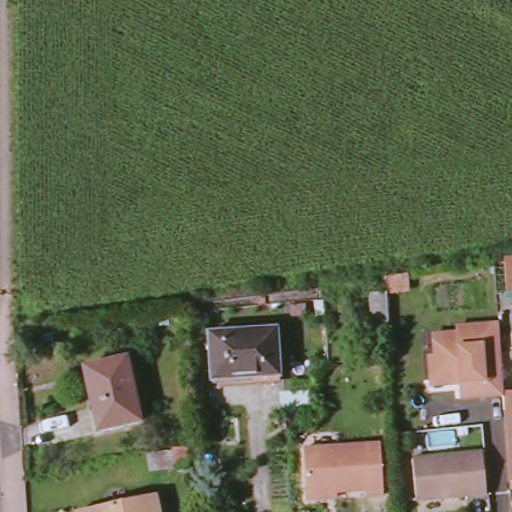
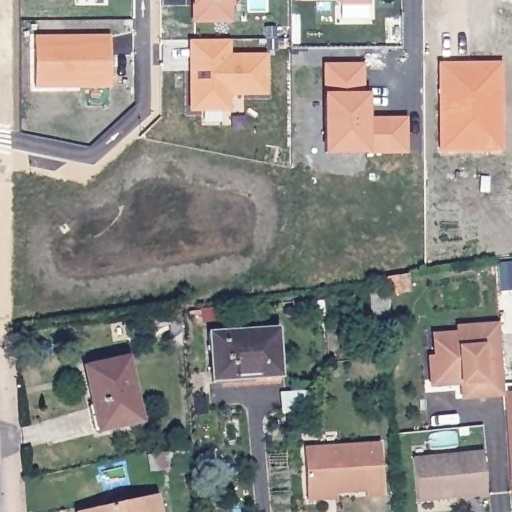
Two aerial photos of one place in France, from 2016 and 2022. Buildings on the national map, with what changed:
new [(226,22),(189,23),(188,0),(225,0),(226,22)]
new [(368,5),(341,5),(341,0),(368,0),(368,5)]
new [(95,88),(33,89),(32,39),(107,38),(107,74),(108,88),(95,88)]
new [(191,71),(191,41),(227,41),(228,58),(265,57),(265,95),(228,96),(228,110),(188,111),(187,71),(191,71)]
new [(469,71),(491,71),(501,71),(501,116),(502,152),(441,151),(440,66),(469,65),(469,71)]
new [(362,66),(362,116),(400,116),(401,150),(325,152),(325,67),(362,66)]
unchanged [(387,294),(386,279),(409,277),(411,296),(390,298),(390,335),(371,336),(368,295),(387,294)]
unchanged [(463,393),(462,386),(432,388),(432,382),(430,358),(436,358),(435,337),(458,335),(458,331),(457,329),(500,326),(501,331),(505,395),(505,397),(480,399),(463,400),(463,393)]
unchanged [(211,355),(210,336),(277,331),(280,379),(220,383),(213,384),(211,355)]
unchanged [(96,409),(92,409),(89,387),(92,386),(87,366),(127,357),(141,426),(101,434),(96,409)]
unchanged [(505,397),(505,395),(512,394),(512,479),(512,480),(505,397)]
unchanged [(308,500),(308,494),(306,448),(382,445),(385,497),(367,498),(367,492),(337,493),(338,499),(308,500)]
unchanged [(173,450),(187,449),(189,468),(176,469),(173,450)]
unchanged [(414,461),(483,453),(489,496),(418,503),(414,461)]
unchanged [(159,512),(87,512),(156,498),(159,512)]

